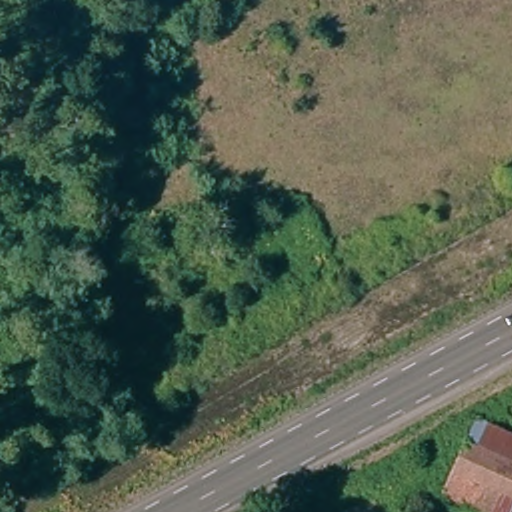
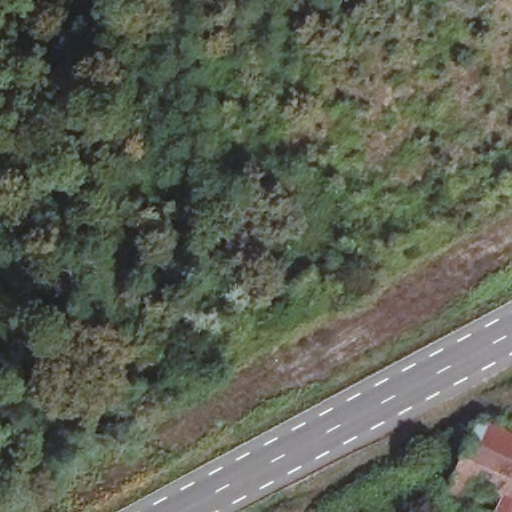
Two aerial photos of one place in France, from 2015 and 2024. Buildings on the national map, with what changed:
unchanged [(443,498),(477,418),(512,434),(512,512),(475,512),(443,498)]

